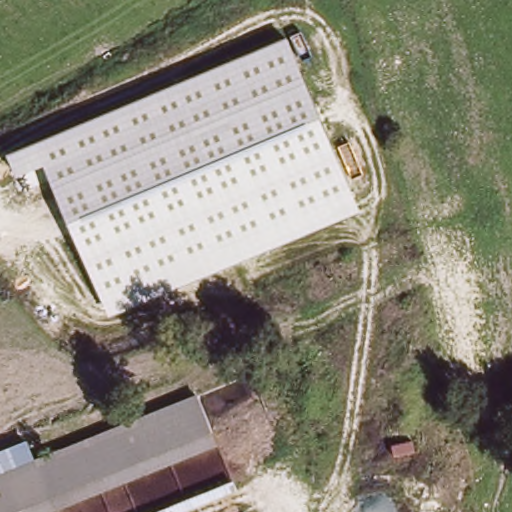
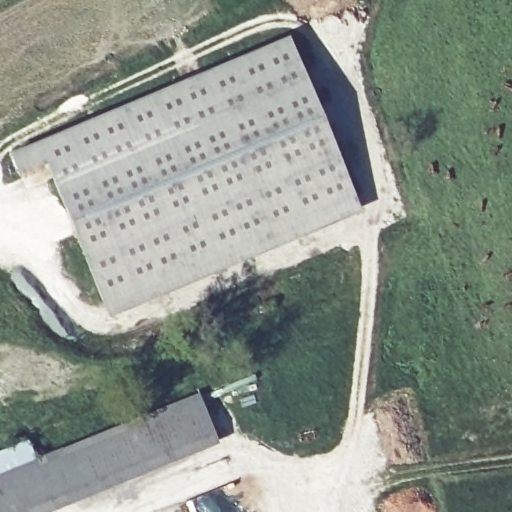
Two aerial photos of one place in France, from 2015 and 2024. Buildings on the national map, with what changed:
unchanged [(363,210),(111,315),(47,164),(19,175),(9,153),(289,36),(363,210)]
unchanged [(214,433),(27,512),(0,512),(0,485),(201,402),(214,433)]
unchanged [(29,436),(42,467),(0,485),(0,448),(29,436)]

